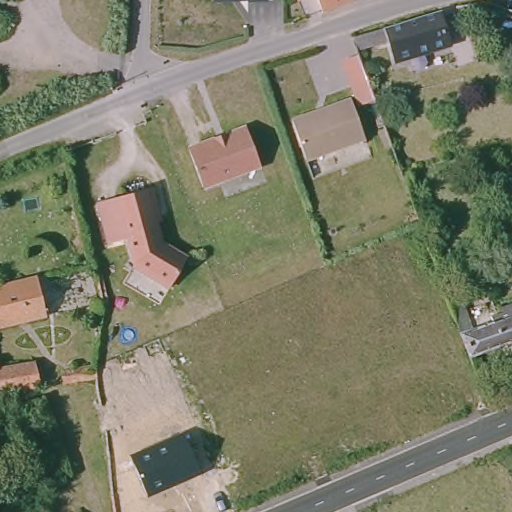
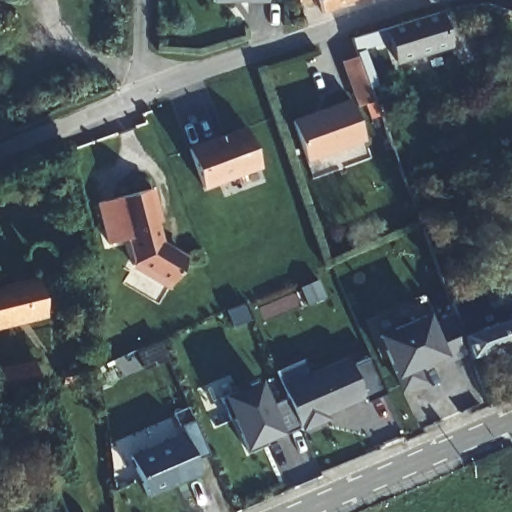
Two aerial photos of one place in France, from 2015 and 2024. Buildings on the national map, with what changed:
unchanged [(259,3),(239,4),(239,1),(204,3),(204,0),(259,0),(259,3)]
unchanged [(314,8),(310,0),(336,0),(328,3),(314,8)]
unchanged [(420,16),(434,12),(443,38),(393,53),(389,40),(385,28),(420,16)]
unchanged [(366,89),(351,94),(341,68),(356,61),(366,89)]
unchanged [(308,114),(309,116),(317,113),(316,111),(344,100),(358,138),(300,161),(285,123),(308,114)]
unchanged [(248,123),(264,161),(206,183),(191,145),(248,123)]
unchanged [(147,188),(153,211),(146,212),(154,243),(179,259),(162,287),(126,264),(129,259),(123,237),(101,242),(92,201),(147,188)]
unchanged [(33,274),(43,313),(0,324),(0,284),(33,274)]
unchanged [(468,329),(497,318),(494,309),(504,305),(504,300),(512,297),(512,339),(466,358),(444,300),(456,296),(468,329)]
new [(427,311),(431,321),(444,315),(461,356),(443,364),(438,356),(418,363),(424,379),(402,390),(378,331),(427,311)]
unchanged [(3,351),(8,370),(43,361),(46,385),(0,396),(0,352),(3,351)]
unchanged [(93,366),(94,368),(66,374),(65,361),(94,355),(93,366)]
new [(346,358),(349,366),(368,357),(384,393),(364,402),(361,397),(333,410),(332,407),(323,411),(326,418),(299,430),(298,427),(286,398),(281,387),(346,358)]
new [(257,383),(267,406),(286,398),(298,427),(279,436),(278,432),(264,438),(266,444),(246,453),(231,419),(228,420),(219,399),(257,383)]
unchanged [(183,432),(201,474),(148,496),(130,453),(183,432)]

